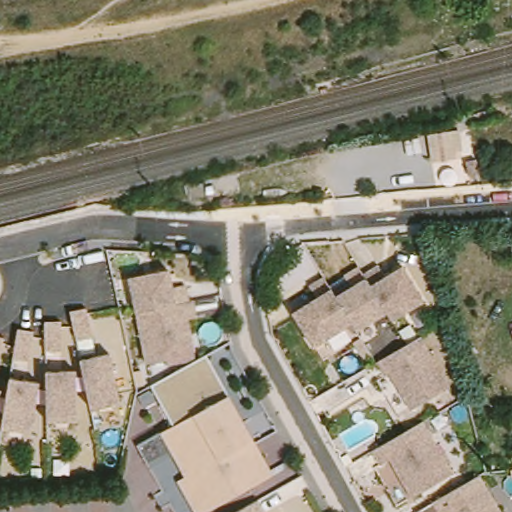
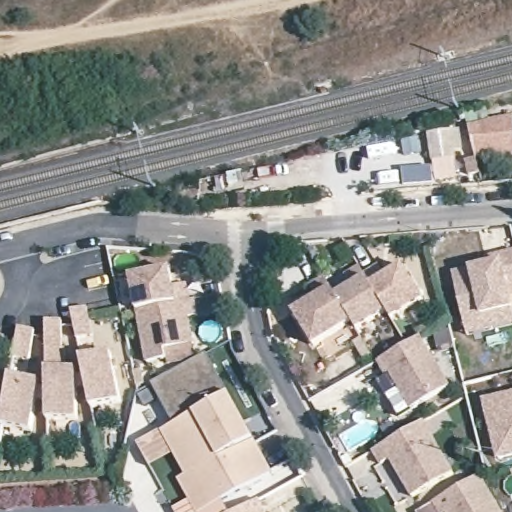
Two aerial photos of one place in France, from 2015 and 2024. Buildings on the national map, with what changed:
new [(512,117),(512,157),(475,160),(469,126),(512,117)]
unchanged [(427,136),(457,131),(460,155),(430,160),(427,136)]
new [(453,273),(470,268),(488,264),(486,256),(512,251),(512,297),(510,297),(512,310),(512,326),(468,335),(453,273)]
unchanged [(319,294),(311,285),(324,278),(334,294),(347,287),(340,275),(356,266),(367,282),(401,264),(418,303),(390,320),(384,313),(354,331),(349,325),(312,347),(290,313),(319,294)]
unchanged [(132,310),(125,276),(165,269),(168,286),(182,284),(185,301),(192,301),(194,319),(187,321),(189,357),(168,360),(142,361),(132,310)]
unchanged [(388,376),(384,378),(374,363),(417,338),(447,387),(409,410),(388,376)]
unchanged [(3,388),(7,377),(43,382),(44,370),(80,369),(79,360),(105,354),(118,403),(88,412),(83,395),(73,395),(72,421),(44,424),(40,404),(33,405),(29,430),(1,428),(1,417),(0,417),(0,388),(3,388)]
unchanged [(172,482),(181,477),(158,434),(168,427),(147,385),(201,356),(225,397),(270,475),(204,512),(190,512),(172,482)]
new [(485,402),(512,396),(512,455),(498,458),(485,402)]
unchanged [(386,459),(378,464),(369,451),(420,421),(453,475),(409,498),(386,459)]
unchanged [(428,503),(478,475),(496,512),(433,512),(428,503)]
unchanged [(254,501),(260,512),(234,512),(254,501)]

